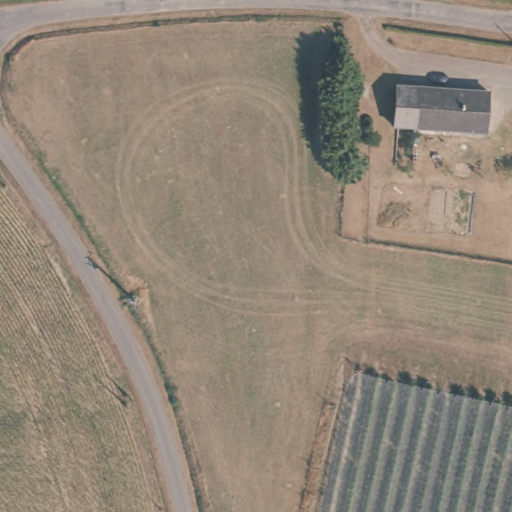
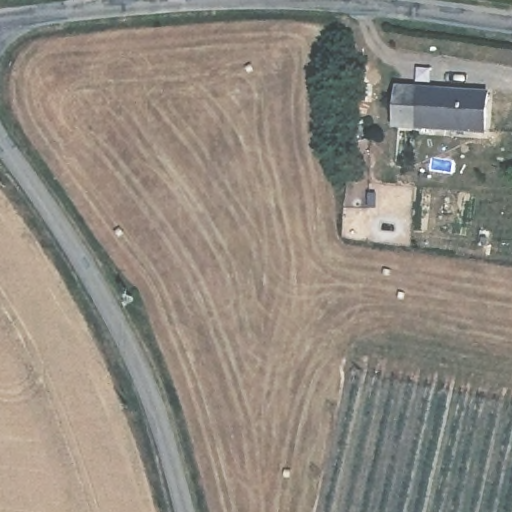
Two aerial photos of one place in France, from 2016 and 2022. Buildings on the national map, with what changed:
unchanged [(490,92),(485,135),(393,124),(398,80),(490,92)]

